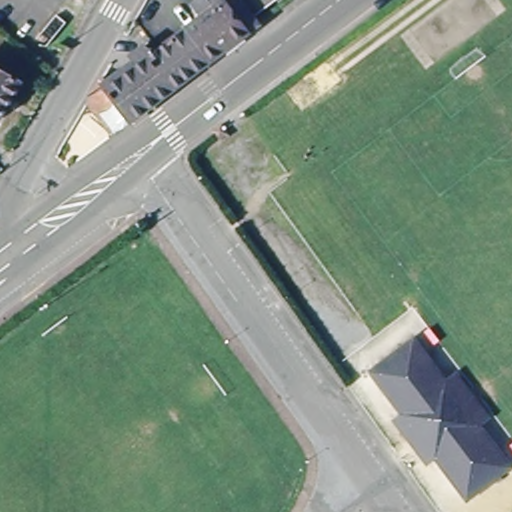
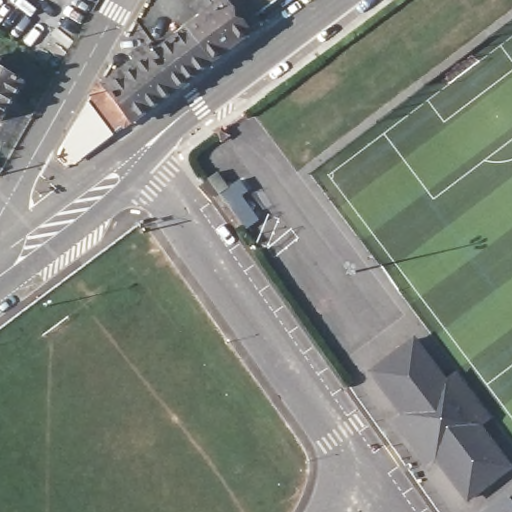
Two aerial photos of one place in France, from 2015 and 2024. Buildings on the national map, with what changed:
unchanged [(249,13),(258,26),(207,62),(183,28),(199,15),(188,0),(267,0),(249,13)]
unchanged [(183,28),(207,62),(172,90),(148,54),(157,47),(183,28)]
unchanged [(157,47),(148,54),(172,90),(131,120),(112,94),(106,102),(92,93),(100,79),(107,84),(136,62),(129,54),(150,39),(157,47)]
unchanged [(28,88),(6,128),(0,124),(0,71),(28,88)]
unchanged [(458,499),(367,370),(410,339),(439,381),(451,372),(484,419),(472,427),(501,468),(458,499)]

